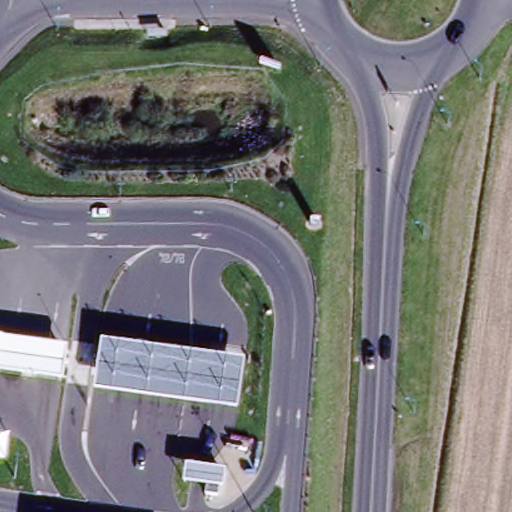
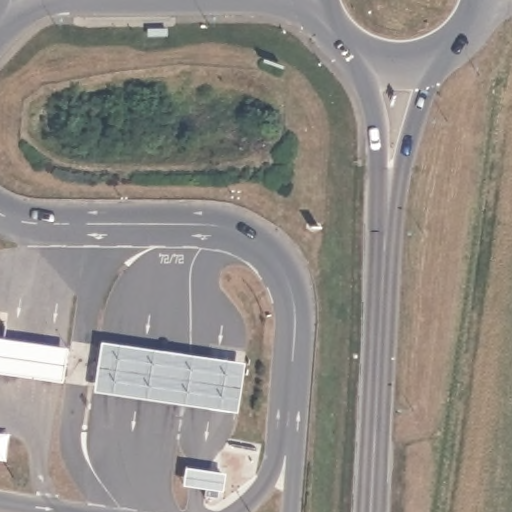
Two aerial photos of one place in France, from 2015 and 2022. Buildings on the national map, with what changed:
unchanged [(65,349),(60,384),(0,374),(0,340),(65,349)]
unchanged [(241,364),(236,416),(92,394),(98,344),(241,364)]

